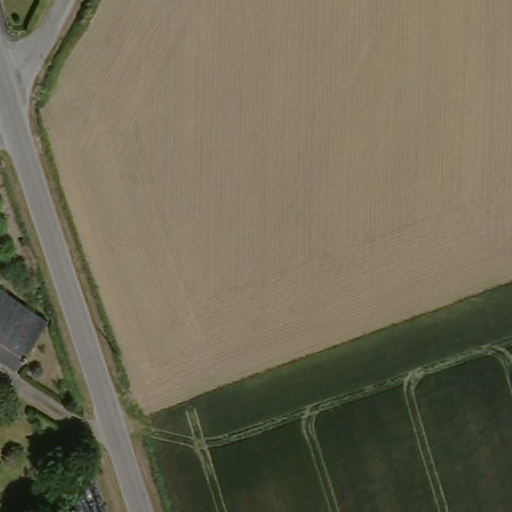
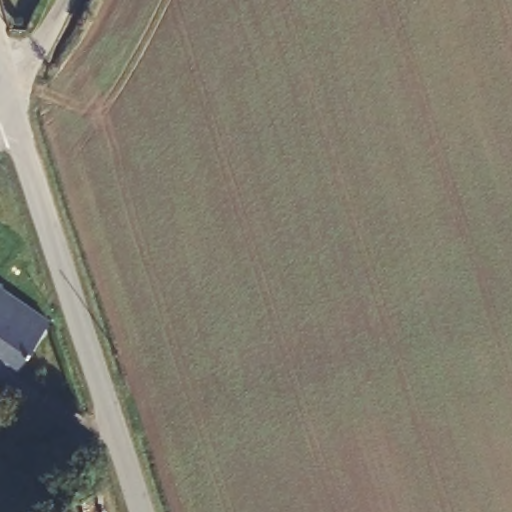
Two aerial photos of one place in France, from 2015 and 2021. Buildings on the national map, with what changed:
unchanged [(45,326),(16,370),(0,359),(0,295),(45,326)]

